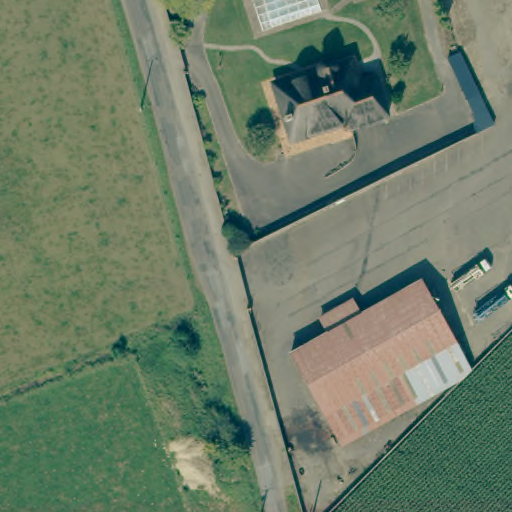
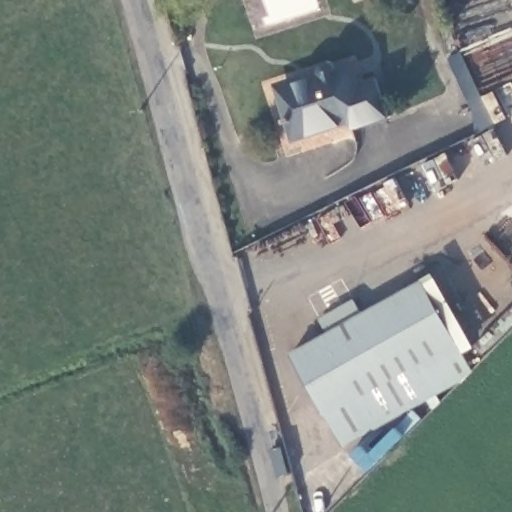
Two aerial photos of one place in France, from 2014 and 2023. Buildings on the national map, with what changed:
unchanged [(377,124),(342,134),(340,131),(283,146),(276,124),(280,122),(272,92),(309,80),(309,73),(315,68),(324,66),(324,69),(341,65),(348,86),(366,82),(377,124)]
unchanged [(324,341),(314,326),(349,307),(358,321),(420,287),(469,374),(338,452),(292,374),(287,360),(298,354),(324,341)]

